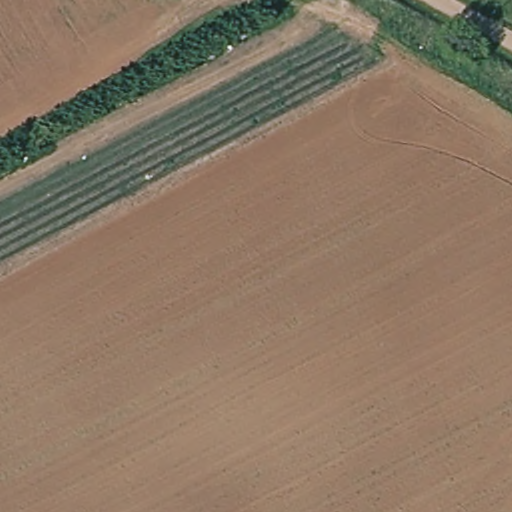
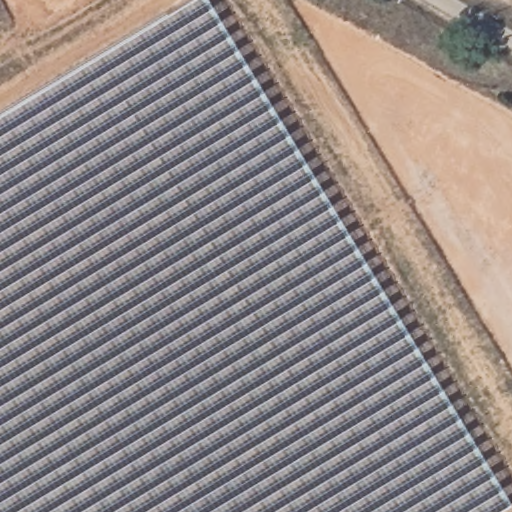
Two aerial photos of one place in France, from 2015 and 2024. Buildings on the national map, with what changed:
new [(0,107),(178,0),(205,0),(506,501),(488,512),(0,512),(0,107)]

